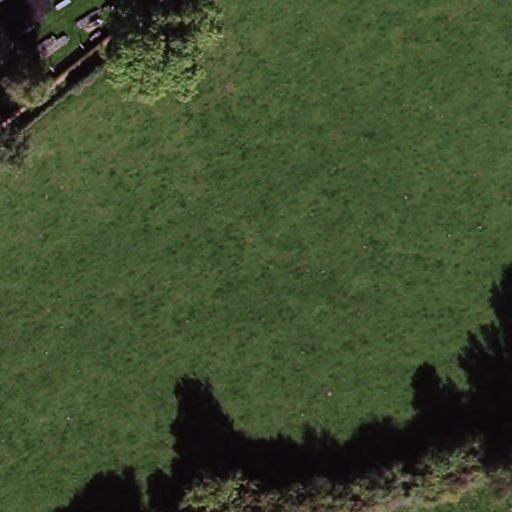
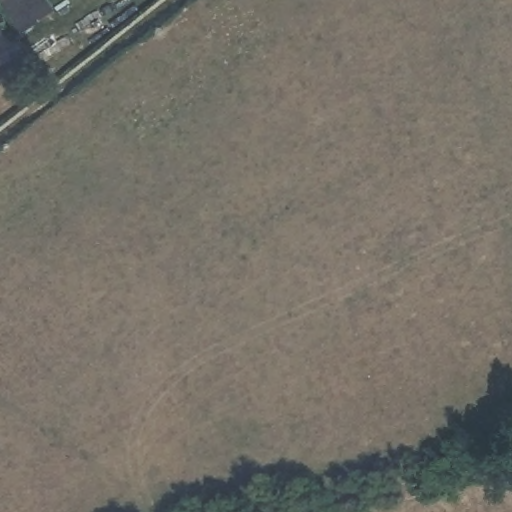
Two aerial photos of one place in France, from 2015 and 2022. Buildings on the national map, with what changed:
unchanged [(45,21),(15,42),(0,20),(0,0),(31,0),(45,21)]

